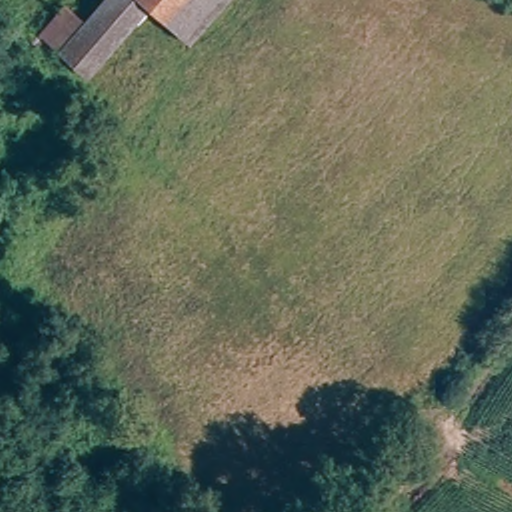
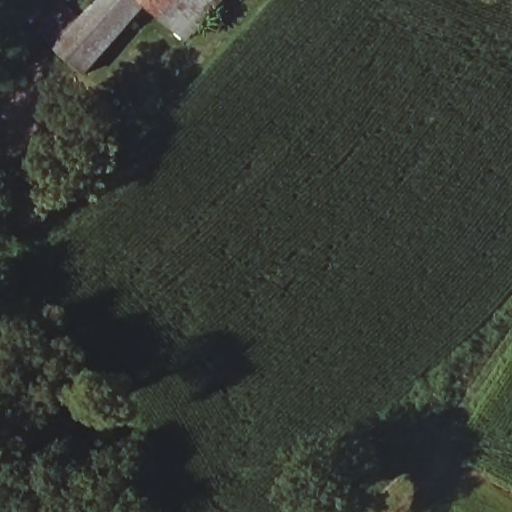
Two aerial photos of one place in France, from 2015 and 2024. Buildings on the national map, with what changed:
unchanged [(69,2),(85,16),(89,11),(98,0),(152,0),(156,4),(88,79),(60,56),(55,51),(63,42),(47,26),(69,2)]
unchanged [(152,0),(178,0),(166,14),(156,4),(152,0)]
unchanged [(225,0),(192,37),(166,14),(178,0),(225,0)]

